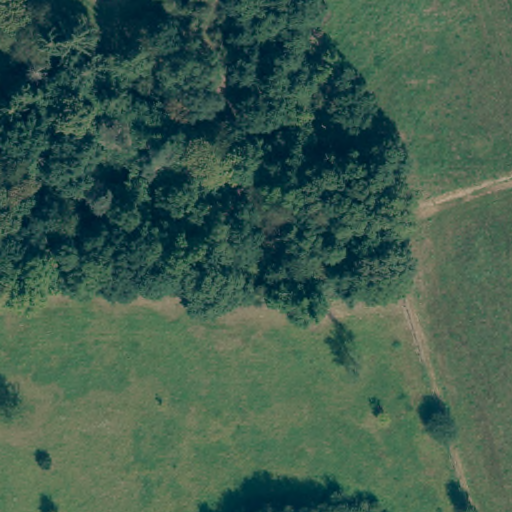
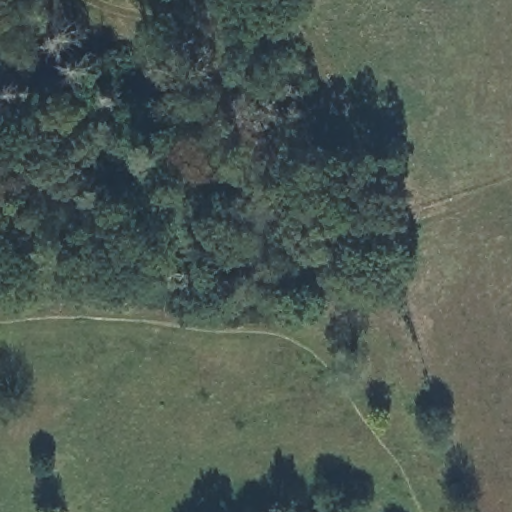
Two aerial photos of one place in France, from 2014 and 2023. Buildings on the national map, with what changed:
[]

